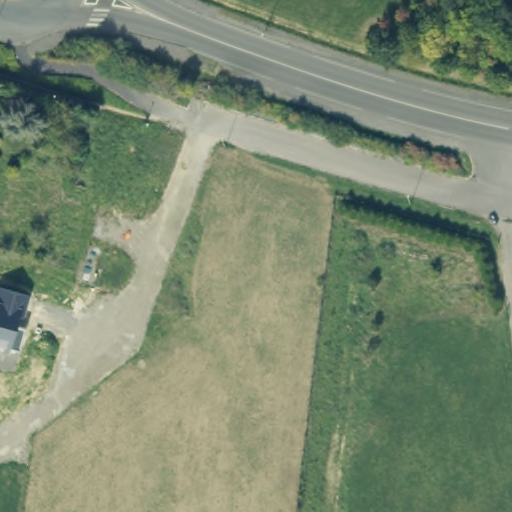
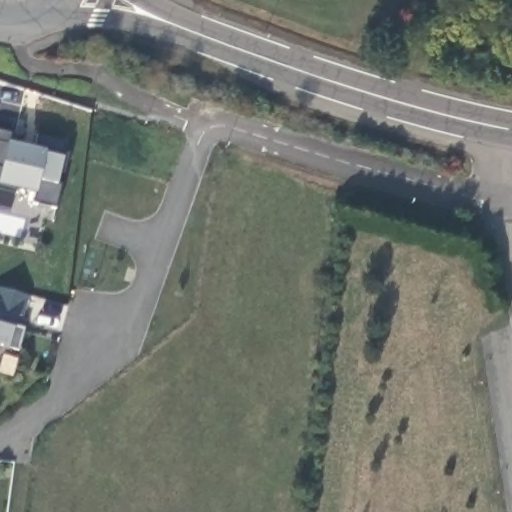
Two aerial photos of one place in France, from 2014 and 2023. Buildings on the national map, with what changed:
new [(36,193),(13,188),(12,193),(0,190),(0,132),(13,135),(11,142),(31,146),(35,135),(62,141),(62,150),(66,151),(63,158),(58,185),(54,209),(32,203),(36,193)]
unchanged [(28,295),(23,317),(17,316),(13,328),(22,330),(15,352),(0,348),(0,289),(28,295)]

